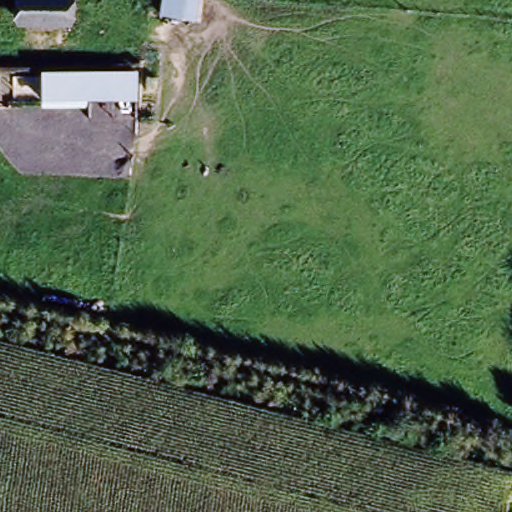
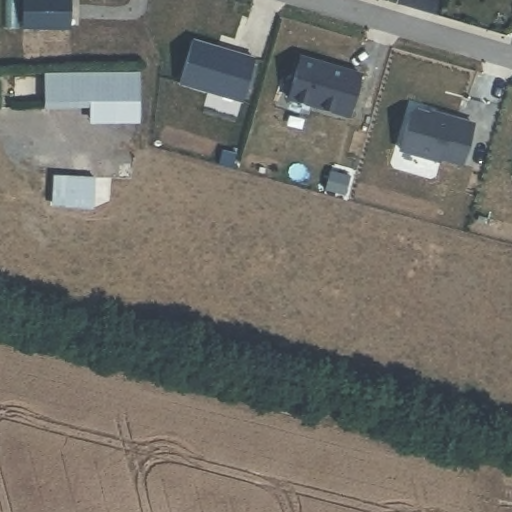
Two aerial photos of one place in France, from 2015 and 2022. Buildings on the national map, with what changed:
unchanged [(16,27),(17,0),(76,0),(76,28),(16,27)]
demolished [(202,0),(198,22),(158,15),(161,0),(202,0)]
new [(244,101),(181,84),(193,42),(256,59),(244,101)]
new [(350,117),(290,100),(301,59),(361,75),(350,117)]
unchanged [(139,76),(139,102),(48,104),(48,77),(139,76)]
new [(463,165),(403,148),(412,115),(418,111),(436,116),(436,114),(474,124),(463,165)]

